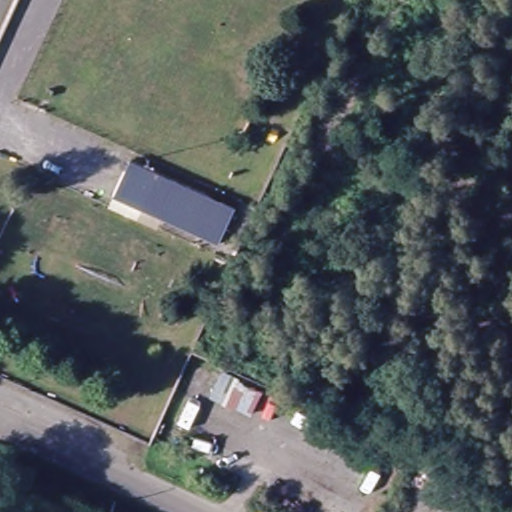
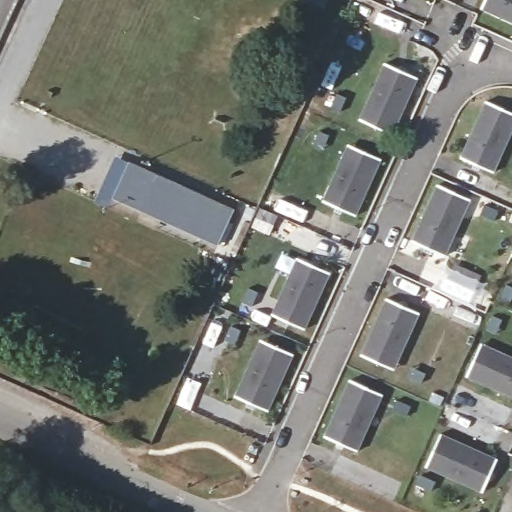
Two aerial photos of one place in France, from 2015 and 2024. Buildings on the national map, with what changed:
new [(479,10),(484,0),(512,0),(512,25),(479,10)]
new [(385,65),(418,80),(392,137),(376,129),(360,122),(366,108),(385,65)]
new [(336,95),(345,99),(340,113),(330,109),(336,95)]
new [(502,110),(512,115),(512,134),(493,175),(460,160),(486,103),(502,110)]
new [(322,130),(331,134),(325,148),(315,143),(322,130)]
new [(348,146),(365,154),(381,161),(355,218),(322,203),(342,160),(348,146)]
unchanged [(235,209),(219,245),(114,197),(131,160),(235,209)]
new [(453,194),(470,201),(463,216),(444,258),(411,243),(437,187),(453,194)]
new [(487,206),(501,212),(497,221),(483,215),(487,206)]
new [(297,259),(330,274),(303,331),(287,324),(271,316),(277,302),(297,259)]
new [(510,283),(512,285),(512,301),(503,297),(510,283)]
new [(249,290),(257,294),(251,307),(242,303),(249,290)]
new [(376,364),(360,357),(386,300),(418,315),(399,357),(392,372),(376,364)]
new [(495,314),(504,318),(498,332),(489,327),(495,314)]
new [(231,328),(240,332),(234,346),(225,342),(231,328)]
new [(260,341),(276,349),(292,356),(266,413),(234,398),(253,356),(260,341)]
new [(482,341),(497,348),(512,355),(512,394),(468,374),(475,358),(482,341)]
new [(410,369),(424,375),(420,384),(406,378),(410,369)]
new [(365,389),(381,396),(375,411),(355,453),(322,439),(348,382),(365,389)]
new [(395,403),(409,409),(405,418),(391,412),(395,403)]
new [(498,458),(483,490),(441,471),(426,464),(435,448),(441,432),(498,458)]
new [(420,479),(429,483),(423,497),(414,492),(420,479)]

